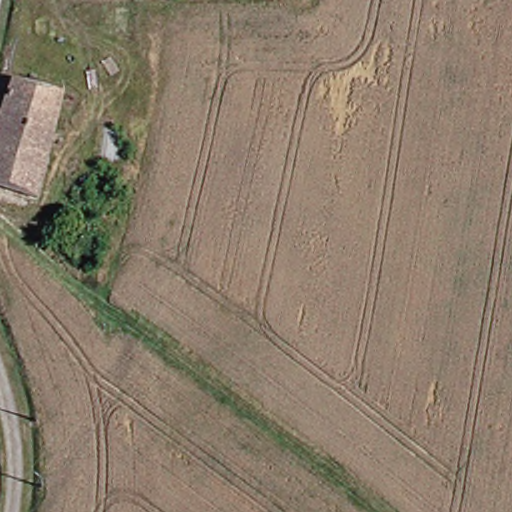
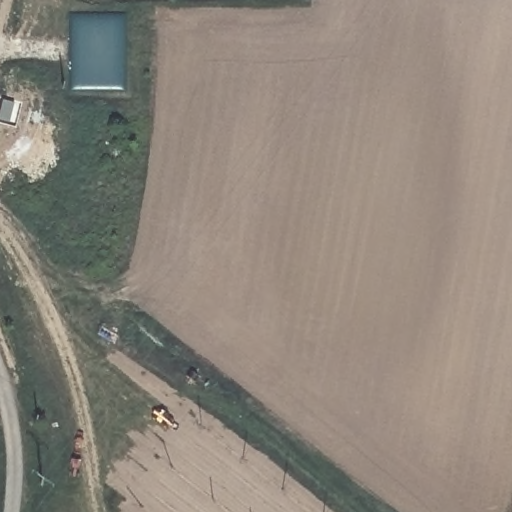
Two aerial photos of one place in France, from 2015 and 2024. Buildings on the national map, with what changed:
demolished [(26,195),(0,185),(0,113),(10,79),(64,95),(42,177),(39,195),(37,199),(26,195)]

